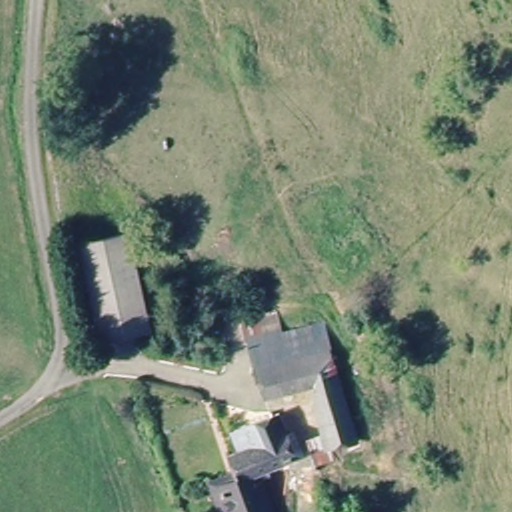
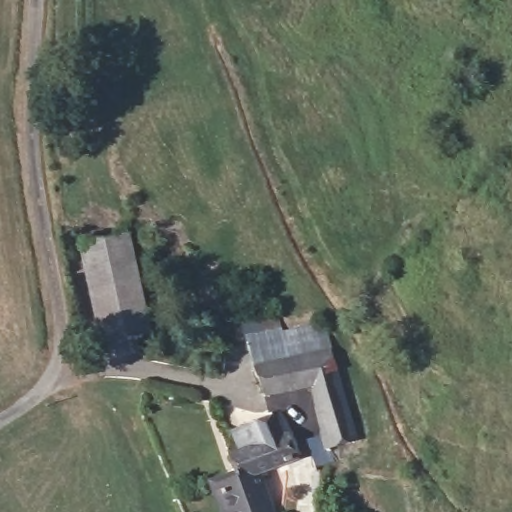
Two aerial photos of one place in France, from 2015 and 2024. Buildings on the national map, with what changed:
unchanged [(124,237),(150,333),(110,343),(83,248),(124,237)]
unchanged [(243,307),(261,303),(267,331),(330,325),(335,351),(252,365),(243,307)]
unchanged [(308,466),(306,457),(304,442),(322,435),(312,385),(257,390),(252,365),(335,351),(351,442),(327,450),(330,462),(308,466)]
unchanged [(306,468),(268,480),(245,480),(242,471),(243,464),(250,463),(246,432),(260,432),(297,424),(306,468)]
unchanged [(213,483),(226,484),(245,480),(268,480),(273,512),(220,512),(213,483)]

